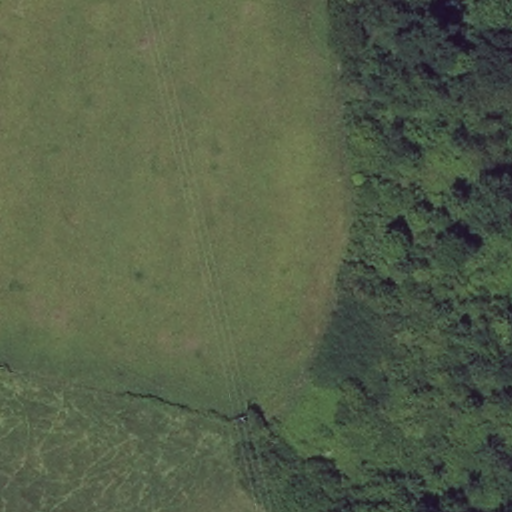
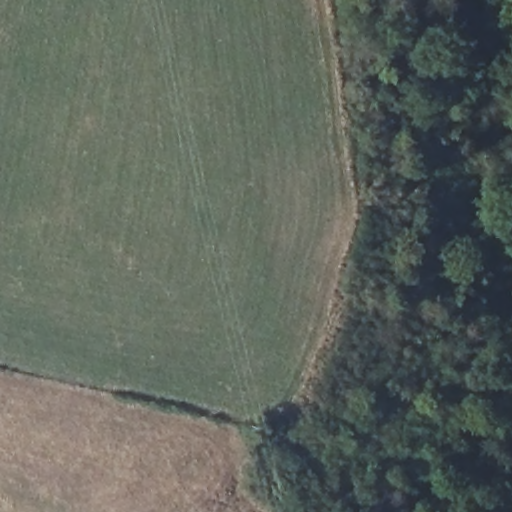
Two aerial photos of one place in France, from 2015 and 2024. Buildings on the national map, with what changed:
[]

